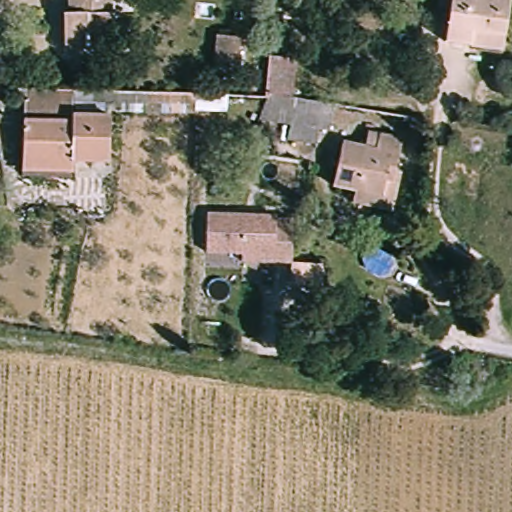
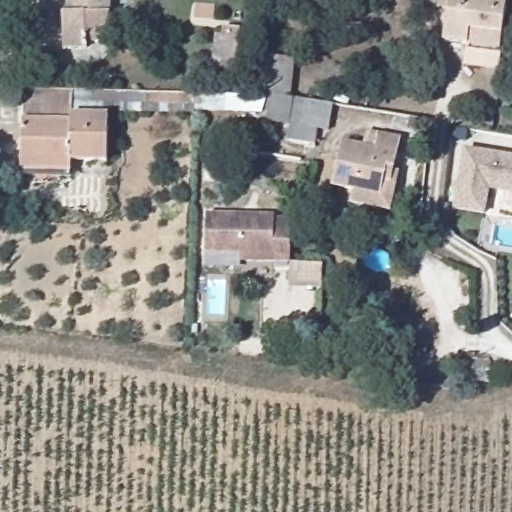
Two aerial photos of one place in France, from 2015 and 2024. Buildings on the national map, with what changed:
unchanged [(107,17),(62,14),(62,8),(73,9),(75,0),(115,0),(114,17),(107,17)]
unchanged [(470,42),(446,39),(449,0),(504,0),(501,28),(499,45),(470,42)]
unchanged [(107,17),(106,40),(85,39),(84,47),(60,44),(62,14),(107,17)]
unchanged [(238,42),(234,73),(209,70),(213,39),(238,42)]
unchanged [(292,52),(290,87),(336,101),(336,127),(322,127),(315,146),(284,142),(289,122),(258,120),(267,49),(292,52)]
unchanged [(18,172),(18,157),(20,118),(71,120),(72,112),(111,113),(108,160),(70,159),(69,174),(18,172)]
unchanged [(351,182),(331,180),(338,139),(369,143),(373,126),(394,130),(387,172),(394,174),(390,202),(371,199),(349,196),(351,182)]
new [(489,191),(486,216),(454,211),(464,149),(512,156),(512,195),(489,191)]
unchanged [(208,254),(208,215),(276,216),(276,218),(294,218),(293,261),(276,261),(243,260),(243,254),(208,254)]
unchanged [(481,375),(478,394),(453,389),(455,370),(481,375)]

